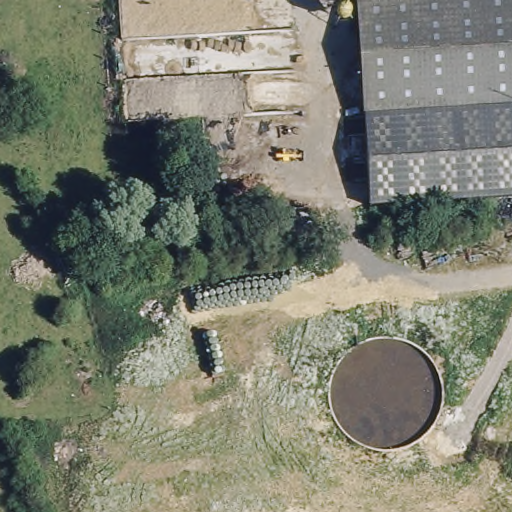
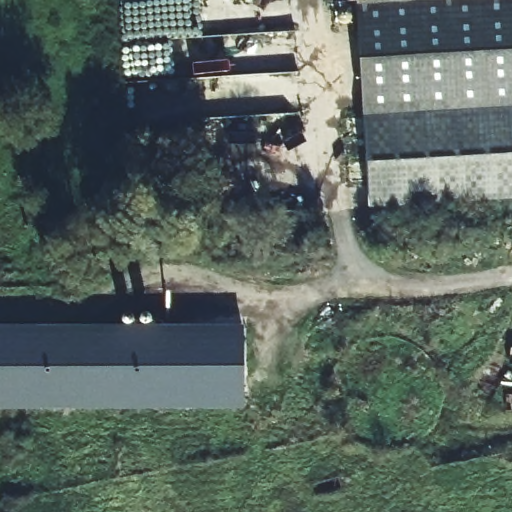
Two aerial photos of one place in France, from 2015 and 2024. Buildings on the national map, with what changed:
unchanged [(356,0),(512,0),(512,102),(363,110),(356,0)]
unchanged [(512,192),(369,200),(363,110),(512,102),(512,192)]
new [(121,324),(121,318),(123,315),(126,313),(147,313),(150,314),(151,316),(152,324),(243,324),(243,408),(0,409),(0,325),(121,324)]

